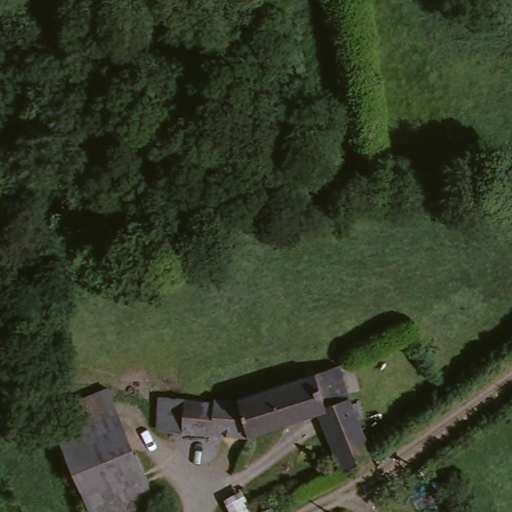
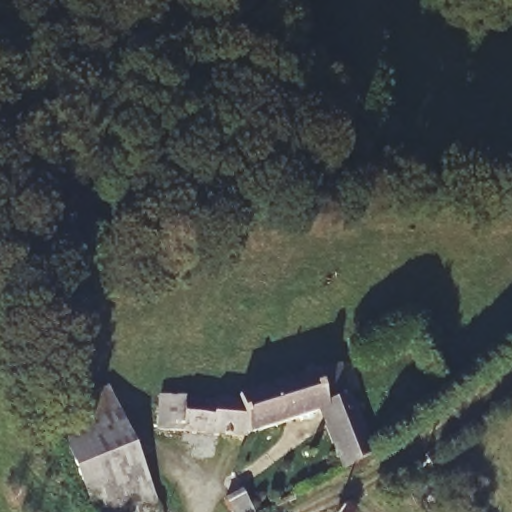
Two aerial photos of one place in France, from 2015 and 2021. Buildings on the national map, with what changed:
unchanged [(202,407),(203,402),(231,404),(230,400),(332,374),(340,395),(366,461),(335,473),(315,416),(242,437),(239,429),(177,435),(177,404),(202,407)]
unchanged [(53,416),(110,392),(148,487),(89,511),(53,416)]
unchanged [(89,512),(89,511),(148,487),(157,512),(89,512)]

